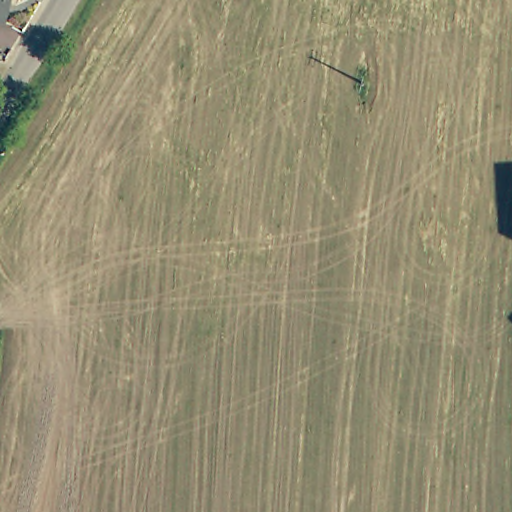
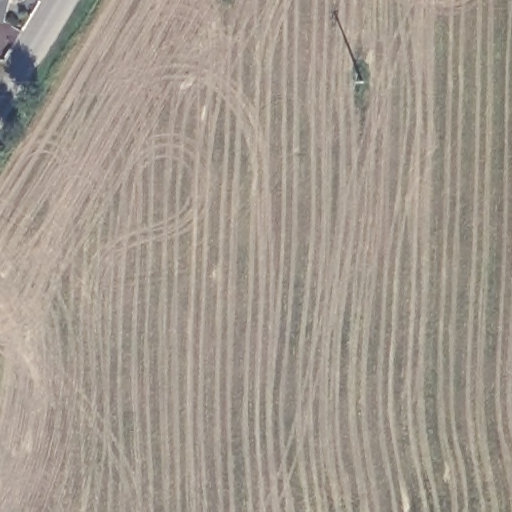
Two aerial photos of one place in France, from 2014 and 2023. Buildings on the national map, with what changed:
unchanged [(0,21),(0,0),(12,0),(7,23),(0,21)]

